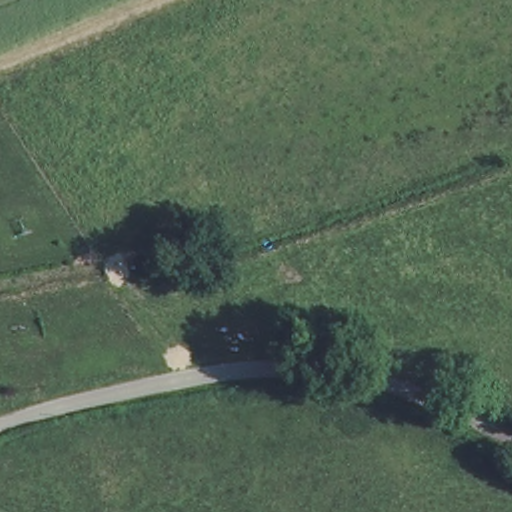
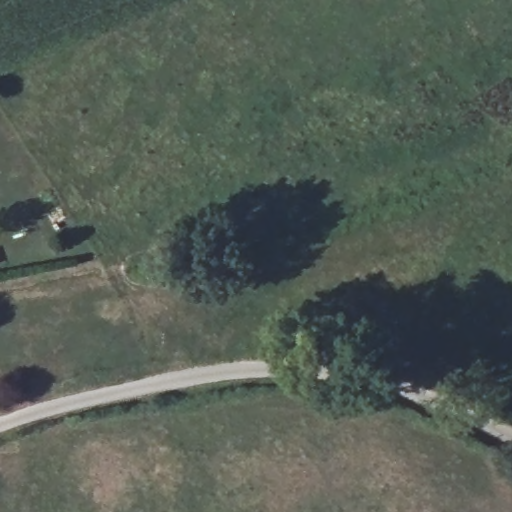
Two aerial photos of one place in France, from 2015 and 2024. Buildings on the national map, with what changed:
[]

